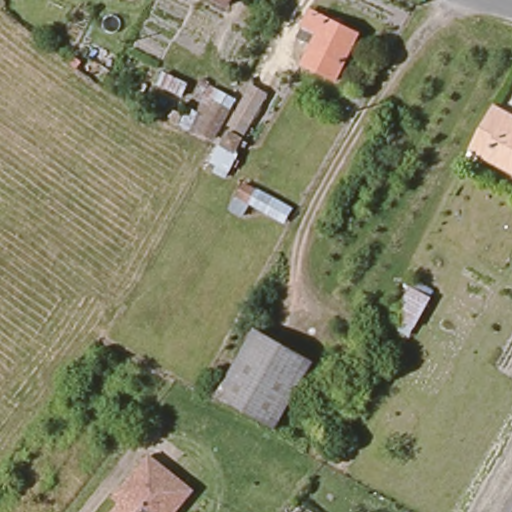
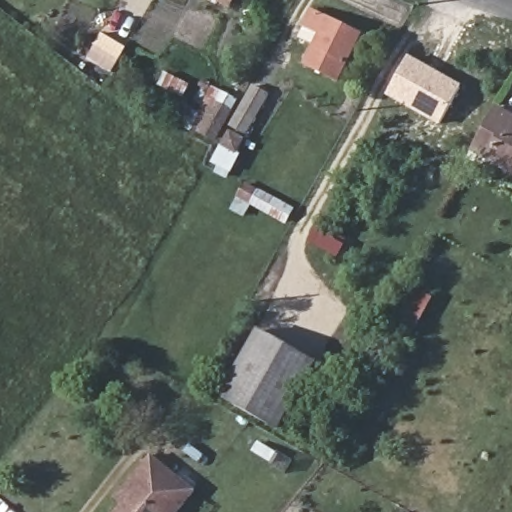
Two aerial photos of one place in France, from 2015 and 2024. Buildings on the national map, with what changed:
unchanged [(234,4),(228,0),(236,0),(234,4)]
unchanged [(323,31),(306,24),(313,8),(352,25),(364,30),(359,42),(342,77),(309,63),(323,31)]
new [(461,85),(440,122),(389,93),(410,56),(461,85)]
unchanged [(239,169),(223,165),(256,87),(273,95),(239,169)]
unchanged [(511,115),(512,115),(512,170),(473,149),(495,107),(511,115)]
unchanged [(431,296),(410,335),(396,328),(396,316),(390,310),(394,302),(400,305),(408,288),(403,285),(406,280),(411,283),(415,278),(434,289),(431,296)]
unchanged [(222,394),(260,330),(315,362),(277,426),(222,394)]
unchanged [(115,498),(122,490),(148,456),(191,490),(177,508),(173,512),(114,512),(121,503),(115,498)]

